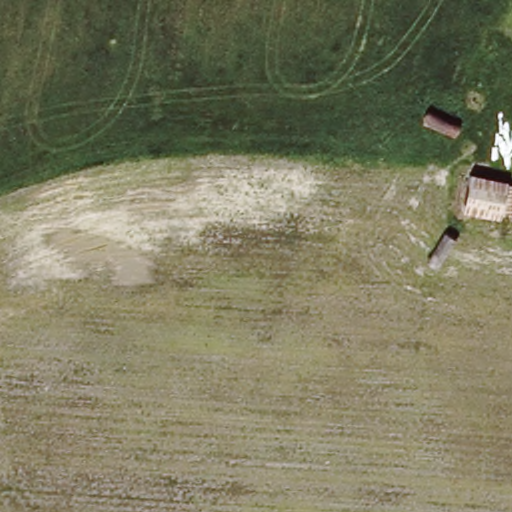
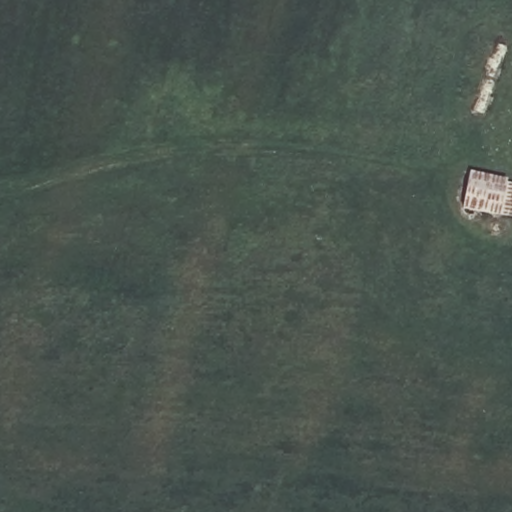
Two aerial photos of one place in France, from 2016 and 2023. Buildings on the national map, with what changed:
unchanged [(462,212),(467,175),(512,182),(512,218),(462,212)]

